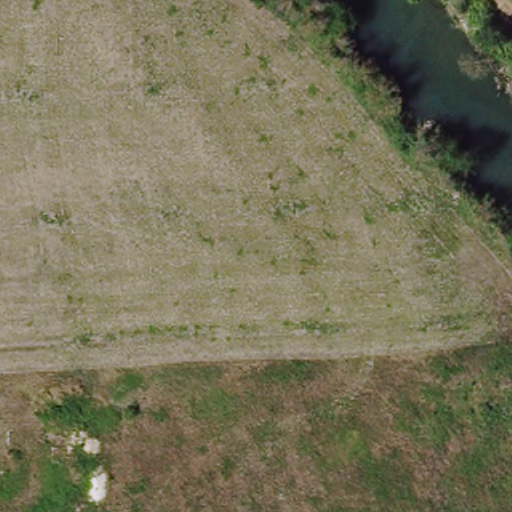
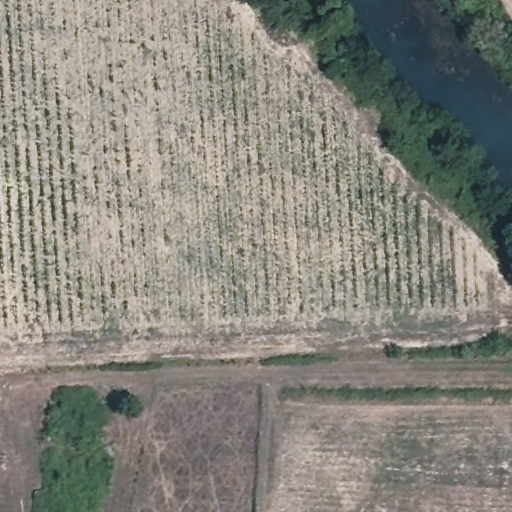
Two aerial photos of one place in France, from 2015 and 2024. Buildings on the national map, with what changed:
[]

